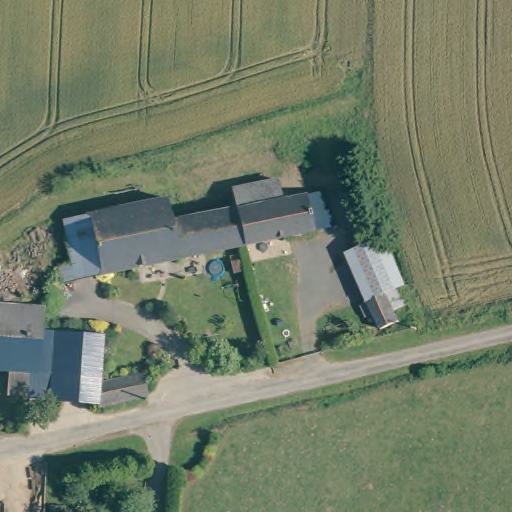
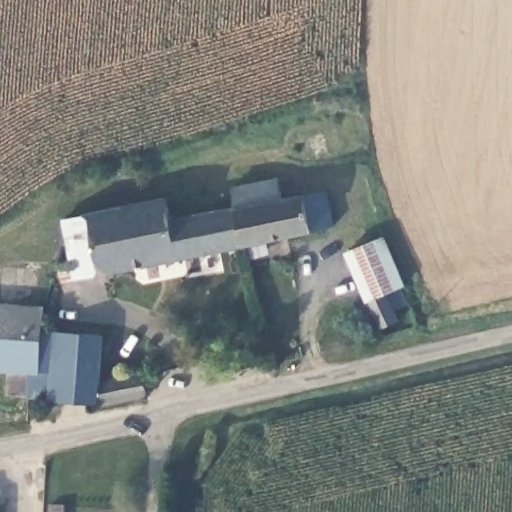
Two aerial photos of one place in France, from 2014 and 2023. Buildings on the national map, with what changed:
unchanged [(282,179),(285,195),(329,187),(334,224),(245,243),(236,205),(232,188),(282,179)]
unchanged [(172,218),(236,205),(245,243),(69,282),(65,264),(73,261),(66,222),(74,220),(167,200),(172,218)]
unchanged [(354,248),(387,235),(408,284),(402,287),(408,304),(397,309),(401,322),(384,329),(354,248)]
unchanged [(50,330),(108,338),(100,384),(151,379),(155,399),(104,409),(10,394),(14,366),(0,363),(0,305),(53,314),(50,330)]
unchanged [(76,504),(75,512),(55,512),(57,500),(76,504)]

